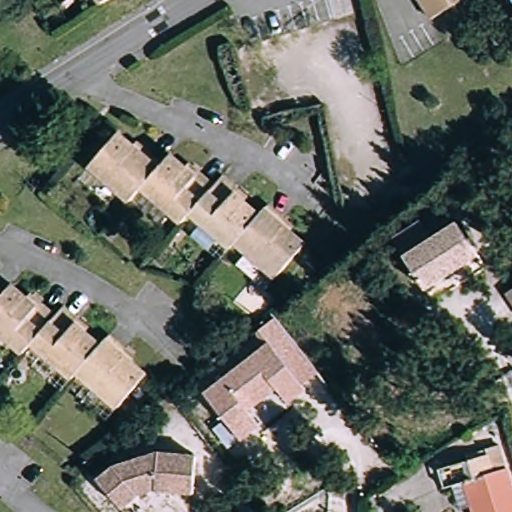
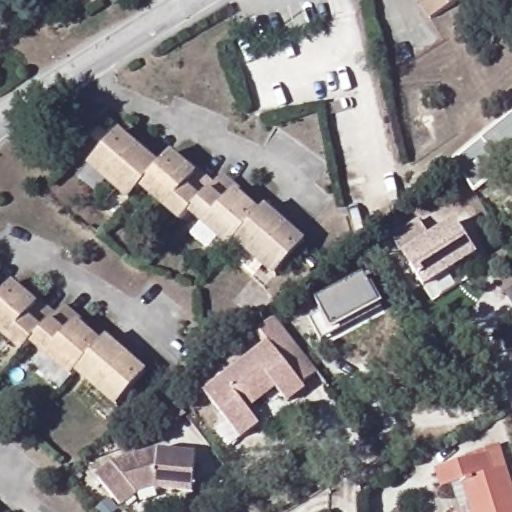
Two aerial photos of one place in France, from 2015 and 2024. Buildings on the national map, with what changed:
unchanged [(422,0),(452,0),(430,13),(422,0)]
unchanged [(143,148),(146,145),(162,158),(153,168),(141,183),(130,196),(89,161),(118,127),(143,148)]
unchanged [(190,209),(182,218),(141,183),(153,168),(162,158),(170,149),(195,170),(198,167),(214,180),(190,209)]
unchanged [(222,171),(237,185),(235,188),(260,209),(235,238),(230,244),(190,209),(214,180),(222,171)]
unchanged [(267,200),(283,214),(280,217),(305,239),(277,273),(235,238),(260,209),(267,200)]
unchanged [(392,233),(420,216),(430,234),(457,217),(477,250),(425,283),(392,233)]
new [(314,302),(362,275),(378,303),(330,330),(332,334),(319,342),(307,320),(320,312),(314,302)]
unchanged [(37,300),(40,297),(55,311),(36,333),(31,339),(23,348),(0,328),(0,293),(3,289),(12,279),(37,300)]
unchanged [(0,293),(0,287),(3,289),(0,293)]
unchanged [(55,311),(63,302),(79,315),(76,318),(101,340),(82,362),(77,368),(72,374),(31,339),(36,333),(55,311)]
unchanged [(262,421),(243,436),(206,389),(270,339),(258,325),(275,312),(286,327),(299,344),(319,369),(303,381),(307,385),(290,398),(277,383),(249,405),(262,421)]
unchanged [(110,331),(125,345),(122,348),(147,370),(117,404),(77,368),(82,362),(101,340),(110,331)]
unchanged [(457,474),(442,478),(437,459),(467,450),(465,445),(499,434),(512,476),(512,512),(476,512),(472,499),(465,501),(457,474)]
unchanged [(115,458),(158,444),(197,446),(195,483),(157,481),(157,480),(139,485),(140,486),(122,500),(98,471),(115,458)]

